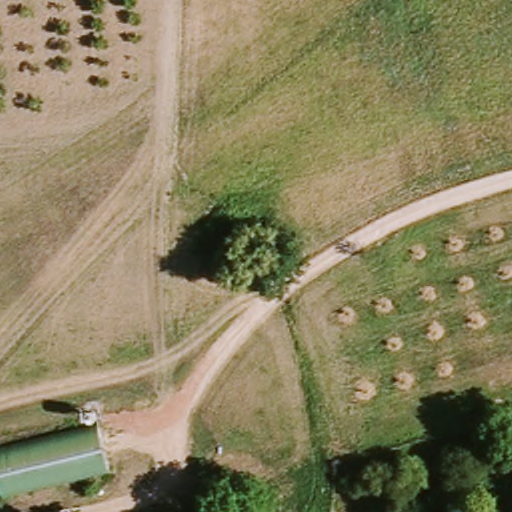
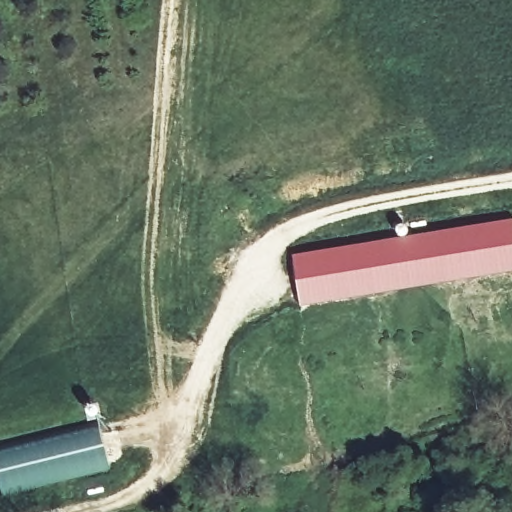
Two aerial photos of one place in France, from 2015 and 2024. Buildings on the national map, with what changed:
new [(398,239),(398,230),(398,229),(400,227),(401,225),(404,225),(406,226),(407,227),(408,230),(408,237),(512,220),(512,272),(301,306),(293,255),(398,239)]
unchanged [(110,475),(0,497),(0,452),(101,431),(110,475)]

